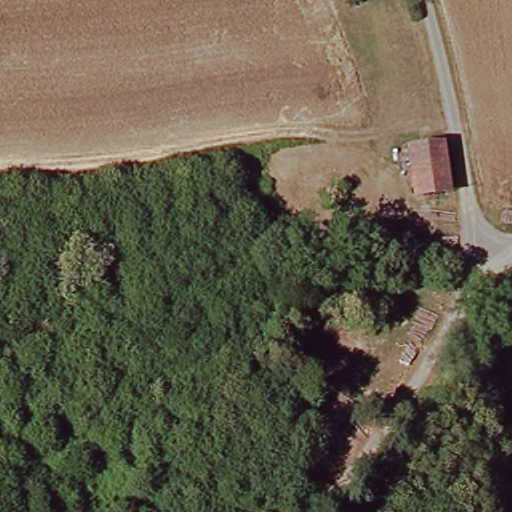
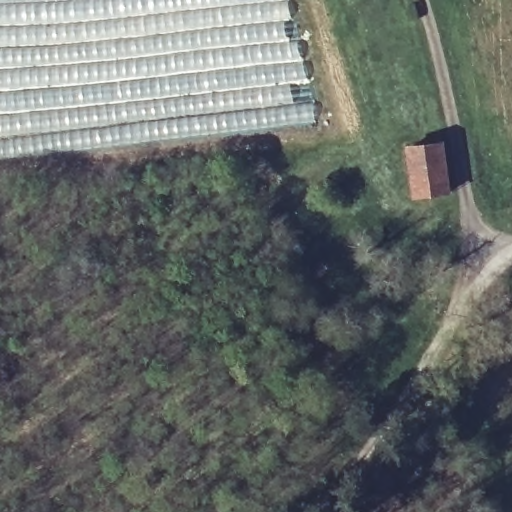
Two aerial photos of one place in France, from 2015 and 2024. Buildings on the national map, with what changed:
new [(306,83),(292,85),(294,101),(300,100),(300,95),(310,94),(315,122),(0,160),(0,0),(290,0),(296,39),(299,39),(306,83)]
unchanged [(400,151),(440,144),(447,196),(407,200),(400,151)]

